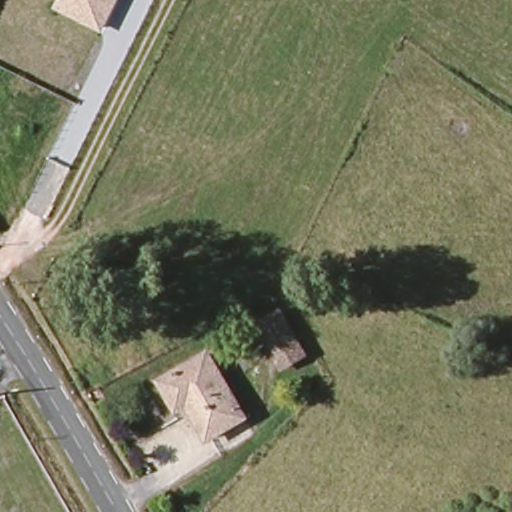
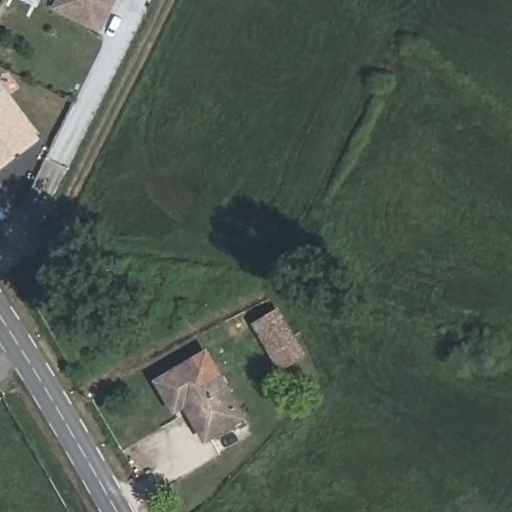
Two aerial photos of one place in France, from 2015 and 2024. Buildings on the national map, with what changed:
unchanged [(104,34),(52,10),(57,0),(120,0),(104,34)]
new [(6,89),(42,137),(0,169),(0,86),(4,91),(6,89)]
unchanged [(279,311),(305,358),(277,372),(254,326),(279,311)]
unchanged [(205,357),(241,418),(210,440),(188,403),(175,411),(159,383),(205,357)]

